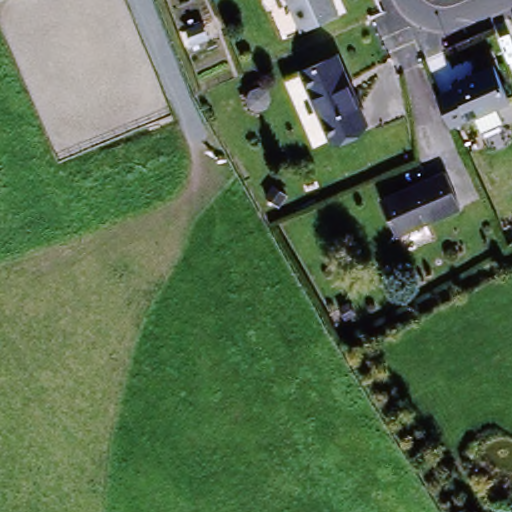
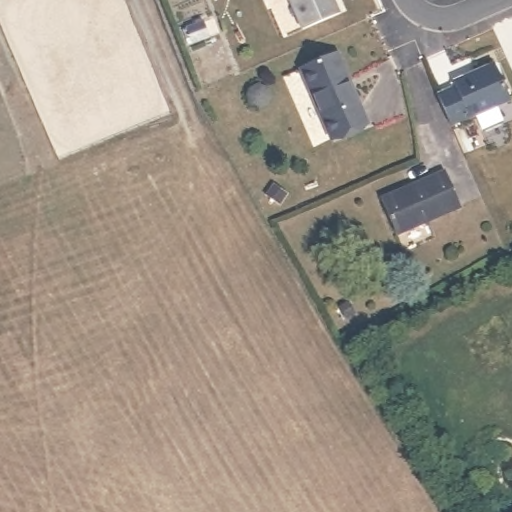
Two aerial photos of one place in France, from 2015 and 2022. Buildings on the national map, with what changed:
unchanged [(344,16),(303,31),(292,0),(338,0),(344,16)]
unchanged [(378,130),(336,149),(303,72),(340,53),(378,130)]
unchanged [(483,132),(476,116),(467,121),(452,126),(437,89),(452,83),(497,66),(511,102),(500,107),(506,122),(483,132)]
unchanged [(457,210),(394,234),(380,199),(444,175),(457,210)]

